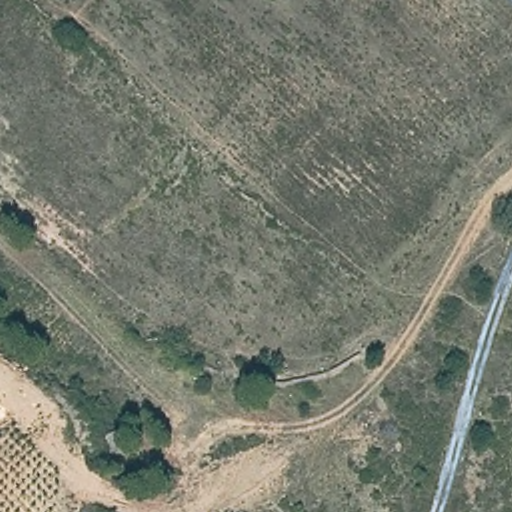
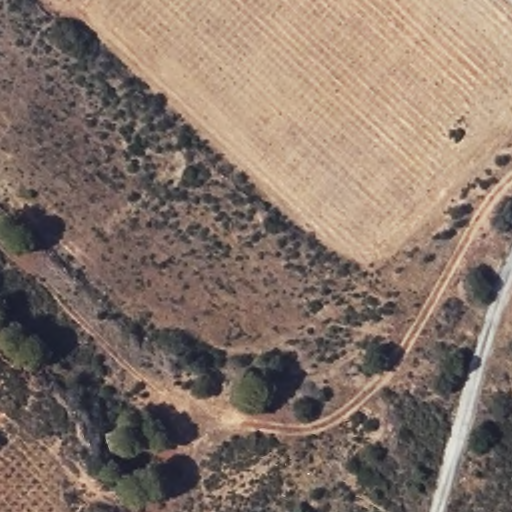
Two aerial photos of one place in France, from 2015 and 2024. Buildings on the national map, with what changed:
unchanged [(124,429),(131,450),(110,456),(104,433),(124,429)]

